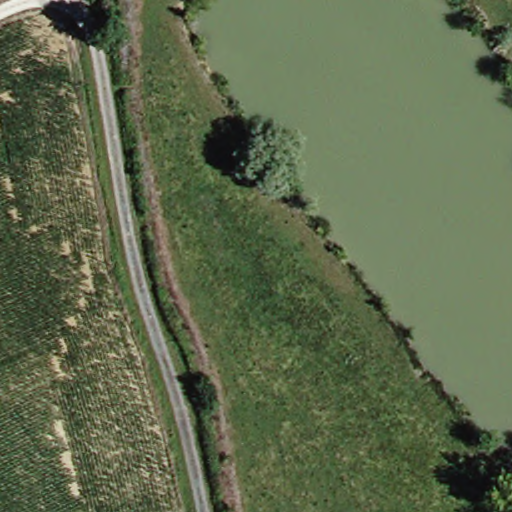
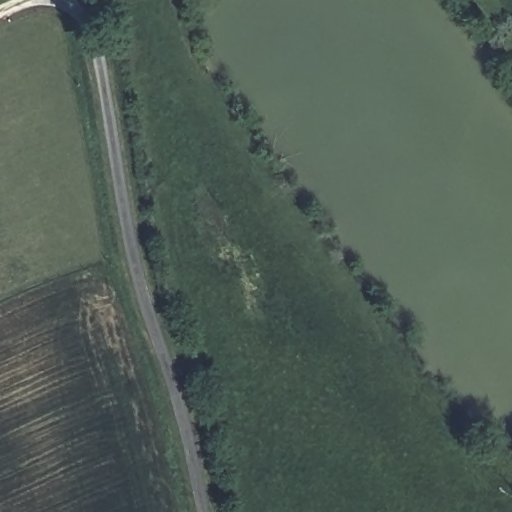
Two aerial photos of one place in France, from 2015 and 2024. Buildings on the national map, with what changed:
[]

